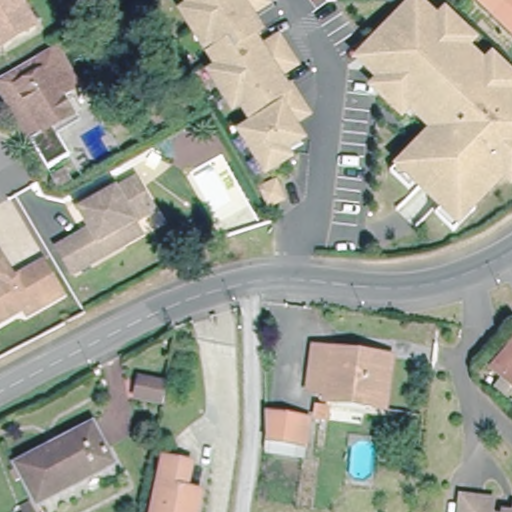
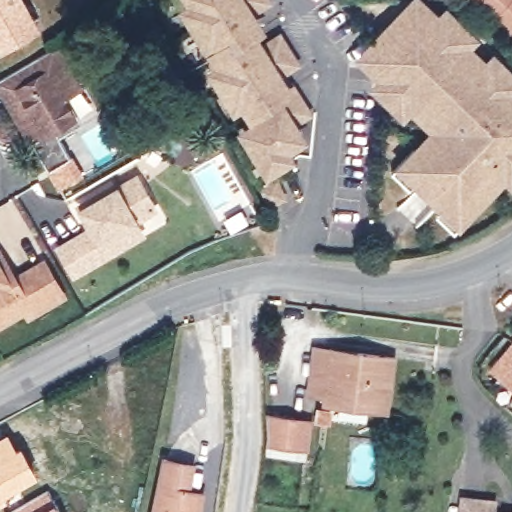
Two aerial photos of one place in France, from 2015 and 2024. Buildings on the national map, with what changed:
unchanged [(0,42),(0,0),(19,0),(33,24),(0,42)]
unchanged [(238,132),(262,116),(254,104),(242,112),(234,99),(225,105),(215,89),(204,71),(211,66),(206,58),(212,52),(204,39),(196,45),(185,29),(175,11),(182,5),(178,0),(254,0),(255,1),(236,14),(246,29),(240,34),(250,49),(268,38),(285,61),(267,74),(276,89),(282,85),(290,99),(274,110),(291,136),(275,148),(280,156),(262,168),(256,160),(238,132)]
unchanged [(477,0),(512,0),(512,31),(477,0)]
unchanged [(455,231),(435,215),(443,204),(417,180),(407,189),(389,173),(410,149),(414,152),(458,104),(485,128),(440,178),(445,182),(495,127),(415,55),(410,59),(450,98),(427,124),(406,104),(400,112),(372,88),(380,79),(357,59),(411,1),(433,22),(440,14),(467,39),(458,47),(481,67),(487,59),(512,81),(512,85),(507,91),(512,95),(512,175),(510,178),(501,172),(472,205),(475,209),(455,231)]
unchanged [(70,154),(50,168),(0,80),(0,79),(59,44),(80,83),(65,94),(75,113),(79,123),(60,134),(70,154)]
unchanged [(68,167),(77,179),(65,187),(57,175),(68,167)]
unchanged [(125,240),(72,269),(59,242),(92,224),(80,200),(100,190),(104,193),(135,173),(154,207),(134,219),(140,233),(125,240)]
unchanged [(261,195),(276,186),(284,202),(268,211),(261,195)]
unchanged [(8,266),(14,275),(42,257),(63,290),(27,312),(22,302),(0,315),(0,269),(1,270),(8,266)]
unchanged [(395,351),(390,404),(325,397),(325,389),(310,389),(313,342),(395,351)]
unchanged [(492,369),(512,344),(512,386),(492,369)]
demolished [(40,503),(18,463),(97,419),(119,463),(40,503)]
unchanged [(309,426),(308,447),(271,445),(271,422),(309,426)]
new [(16,447),(20,444),(37,475),(2,494),(5,501),(0,504),(0,436),(7,432),(16,447)]
unchanged [(163,457),(189,463),(184,489),(193,492),(188,512),(150,512),(163,457)]
new [(48,489),(60,512),(7,512),(48,489)]
unchanged [(466,498),(495,501),(494,512),(465,512),(466,498)]
demolished [(35,506),(38,512),(27,512),(35,506)]

